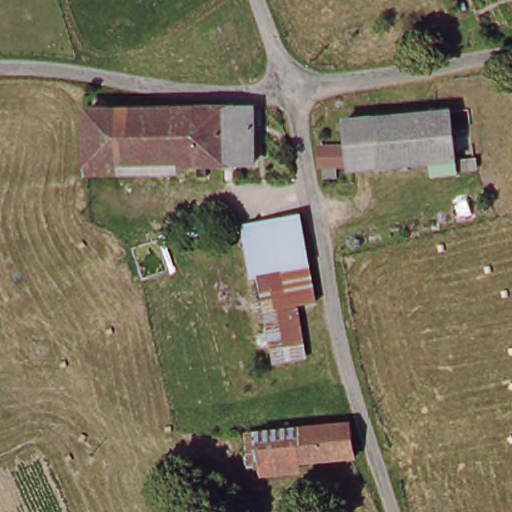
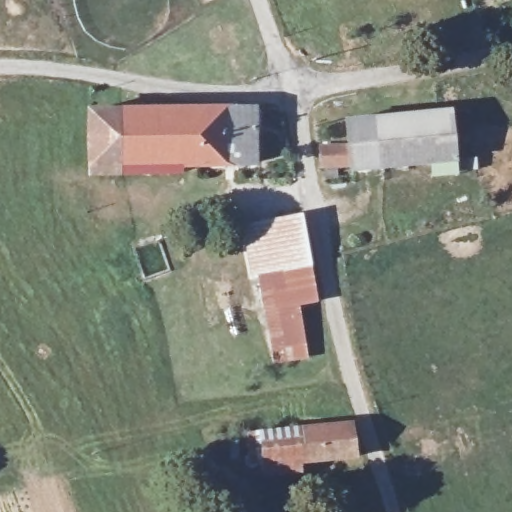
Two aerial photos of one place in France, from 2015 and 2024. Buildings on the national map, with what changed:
unchanged [(178,108),(178,103),(246,110),(248,166),(235,166),(203,167),(178,168),(178,108)]
unchanged [(118,109),(178,108),(178,168),(117,170),(118,109)]
unchanged [(90,171),(88,110),(118,109),(117,170),(90,171)]
unchanged [(455,161),(317,173),(315,151),(346,151),(343,126),(381,120),(448,116),(455,161)]
unchanged [(254,278),(245,279),(236,224),(301,216),(313,303),(298,309),(306,360),(273,367),(254,278)]
unchanged [(250,437),(265,436),(355,426),(359,462),(270,473),(255,475),(250,437)]

